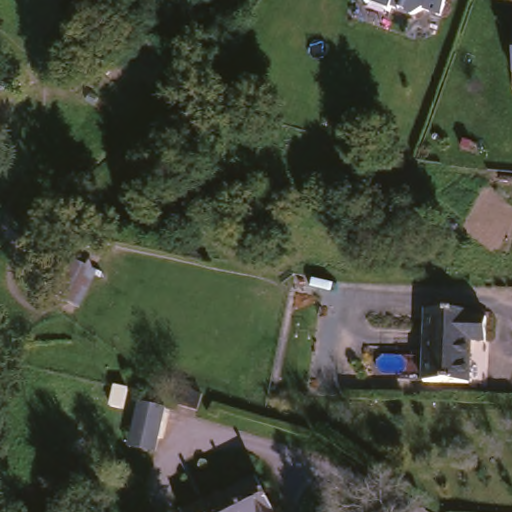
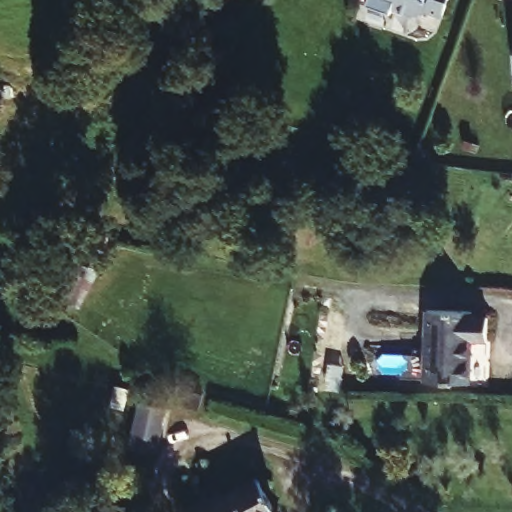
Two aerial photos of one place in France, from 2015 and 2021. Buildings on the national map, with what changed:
unchanged [(420,21),(398,14),(396,19),(371,11),(375,0),(457,0),(450,22),(431,16),(420,21)]
unchanged [(71,312),(48,293),(53,286),(73,262),(77,265),(96,282),(103,288),(86,308),(78,317),(71,312)]
unchanged [(472,307),(472,312),(488,313),(487,338),(471,337),(469,380),(426,380),(430,307),(472,307)]
unchanged [(208,398),(204,413),(186,408),(190,393),(208,398)]
unchanged [(136,455),(139,440),(143,420),(146,408),(173,414),(170,431),(167,445),(164,460),(136,455)]
unchanged [(215,491),(217,495),(253,475),(274,512),(178,512),(177,511),(215,491)]

